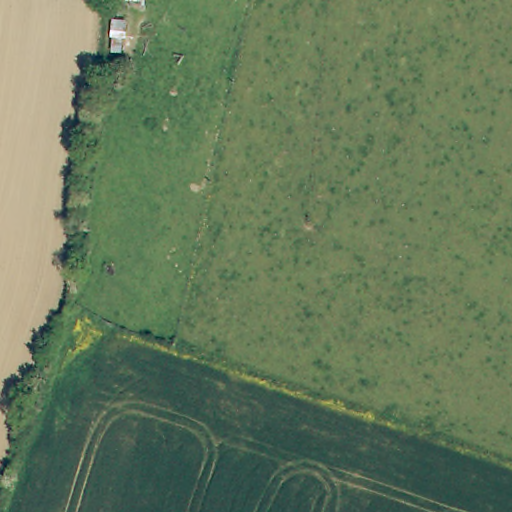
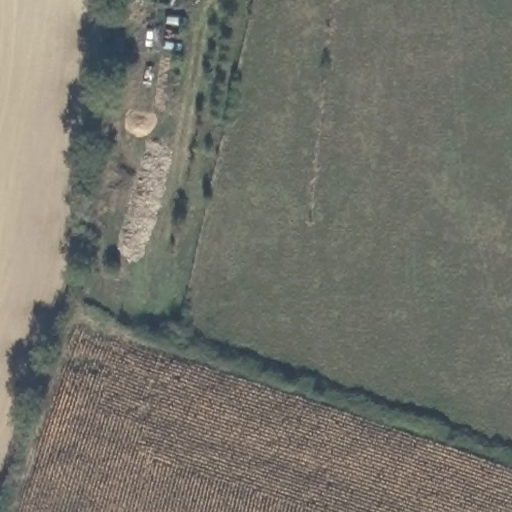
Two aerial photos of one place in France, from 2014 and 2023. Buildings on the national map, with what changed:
[]

